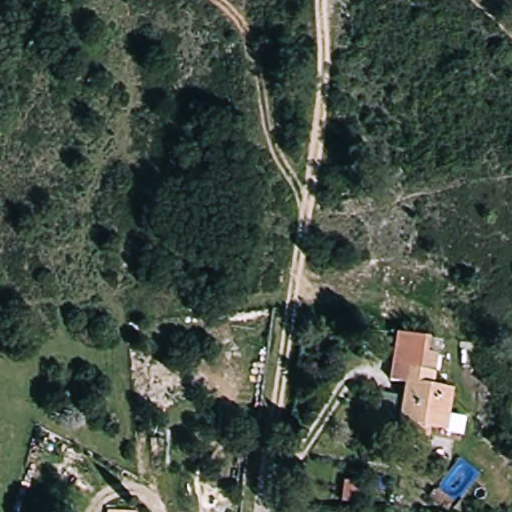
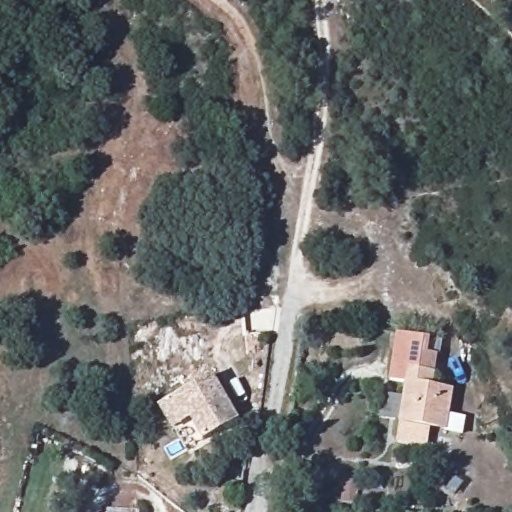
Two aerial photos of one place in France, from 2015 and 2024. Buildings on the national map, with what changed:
unchanged [(394,430),(394,417),(397,376),(389,376),(390,353),(426,356),(425,372),(443,373),(440,403),(437,420),(425,419),(423,433),(394,430)]
new [(215,378),(240,423),(204,443),(191,421),(175,430),(162,408),(179,398),(215,378)]

